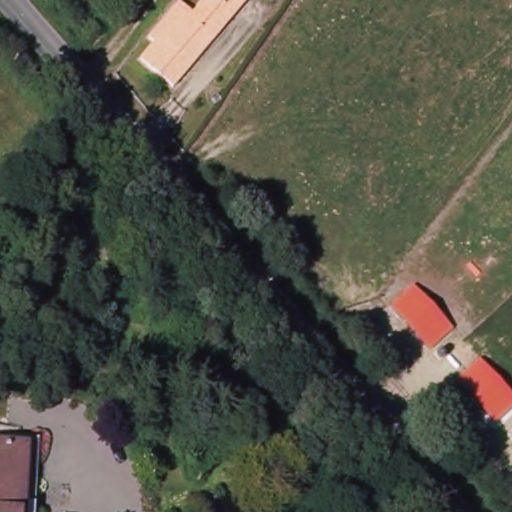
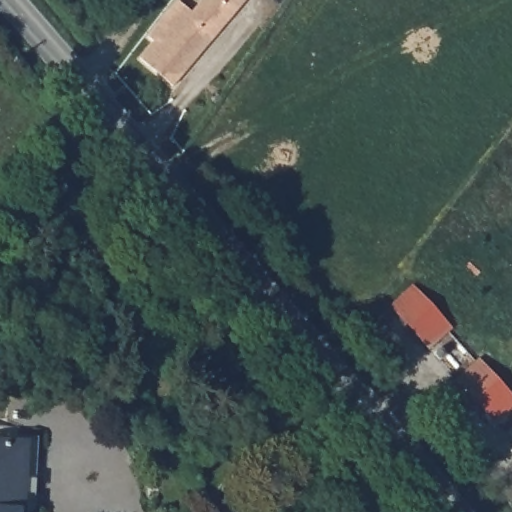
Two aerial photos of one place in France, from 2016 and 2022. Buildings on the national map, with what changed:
unchanged [(151,51),(167,32),(158,26),(179,0),(196,0),(199,2),(201,0),(246,0),(183,78),(151,51)]
unchanged [(391,303),(413,282),(453,329),(430,349),(391,303)]
unchanged [(478,357),(512,396),(512,410),(495,423),(455,376),(478,357)]
unchanged [(223,465),(129,474),(125,429),(219,419),(223,465)]
unchanged [(22,512),(0,512),(0,444),(25,446),(22,512)]

